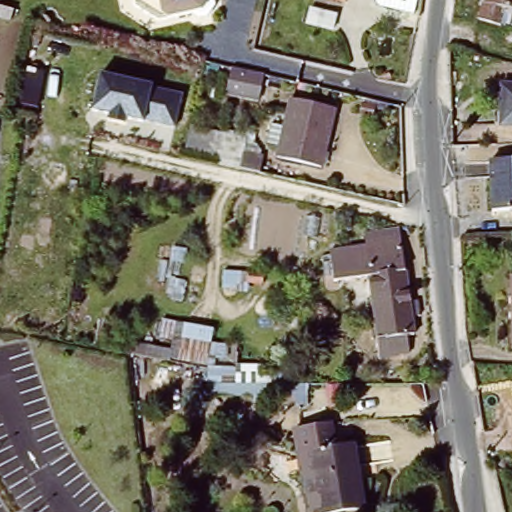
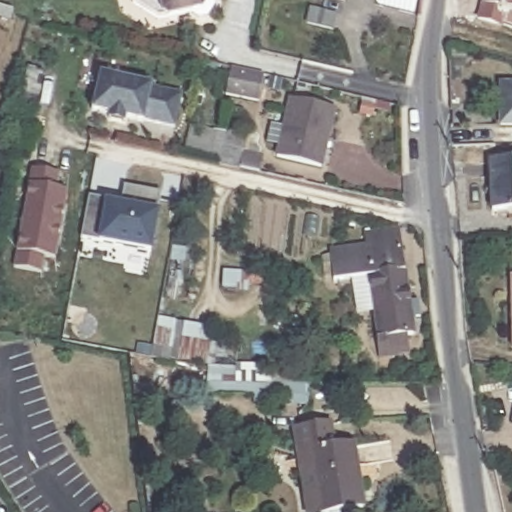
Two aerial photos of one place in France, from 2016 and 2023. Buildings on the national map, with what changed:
unchanged [(212,13),(205,25),(196,27),(187,21),(165,26),(158,22),(154,3),(145,5),(138,1),(138,0),(202,0),(210,5),(212,13)]
unchanged [(334,0),(348,0),(347,3),(334,0)]
unchanged [(424,3),(412,0),(425,0),(425,1),(424,3)]
unchanged [(500,25),(479,18),(484,0),(512,0),(512,21),(502,17),(500,25)]
unchanged [(339,30),(314,24),(317,7),(342,13),(339,30)]
unchanged [(245,76),(257,78),(252,104),(219,97),(225,71),(245,76)]
unchanged [(96,74),(169,94),(163,120),(140,116),(138,124),(86,109),(96,74)]
unchanged [(512,130),(500,130),(500,89),(512,89),(512,130)]
unchanged [(328,152),(325,168),(280,158),(282,147),(270,144),(274,126),(287,128),(292,101),(337,111),(334,125),(330,124),(325,152),(328,152)]
new [(182,152),(189,124),(225,131),(225,133),(220,160),(182,152)]
unchanged [(248,138),(245,150),(262,154),(260,172),(219,163),(225,133),(248,138)]
unchanged [(493,211),(490,160),(512,159),(512,221),(508,221),(507,210),(493,211)]
new [(58,188),(68,191),(66,207),(64,207),(55,259),(44,257),(42,272),(12,268),(17,239),(15,239),(17,219),(22,220),(30,167),(59,173),(58,188)]
new [(155,210),(159,212),(152,252),(97,242),(80,238),(87,196),(104,200),(118,203),(122,184),(159,191),(155,210)]
unchanged [(400,350),(380,352),(377,333),(379,333),(372,286),(335,291),(332,261),(367,256),(366,245),(402,240),(410,295),(419,294),(421,310),(412,311),(415,329),(406,330),(409,350),(400,350)]
unchanged [(205,397),(209,371),(166,362),(175,324),(217,332),(215,346),(230,346),(232,365),(265,363),(263,396),(205,397)]
unchanged [(353,511),(350,512),(315,512),(304,459),(290,461),(285,437),(322,430),(327,454),(344,451),(352,489),(355,490),(360,509),(353,511)]

